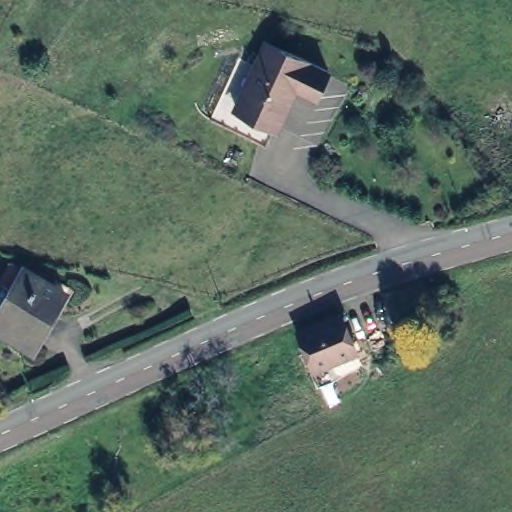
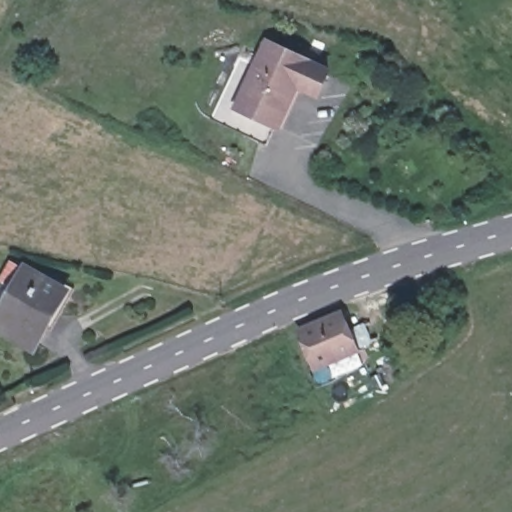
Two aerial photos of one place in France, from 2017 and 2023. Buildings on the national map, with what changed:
unchanged [(309,92),(290,86),(259,144),(221,126),(230,106),(217,100),(237,60),(249,65),(260,42),(320,68),(309,92)]
unchanged [(12,262),(63,295),(30,349),(0,330),(0,312),(2,309),(0,308),(0,289),(3,283),(1,282),(12,262)]
unchanged [(345,356),(305,373),(289,336),(330,320),(345,356)]

